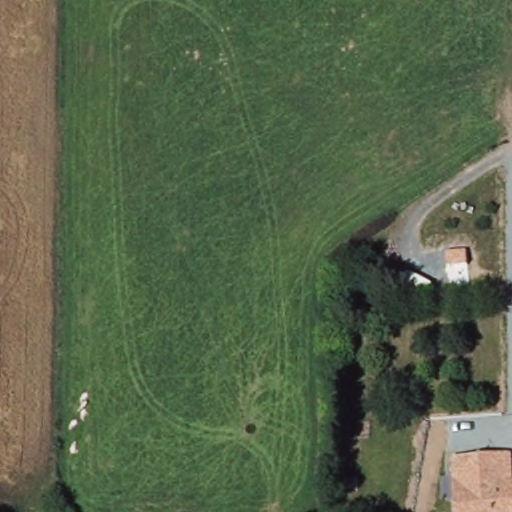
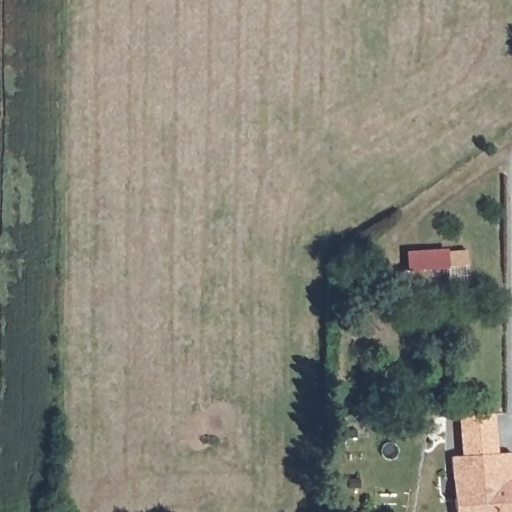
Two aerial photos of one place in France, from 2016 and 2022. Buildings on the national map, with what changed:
unchanged [(455,512),(451,455),(512,453),(512,512),(455,512)]

